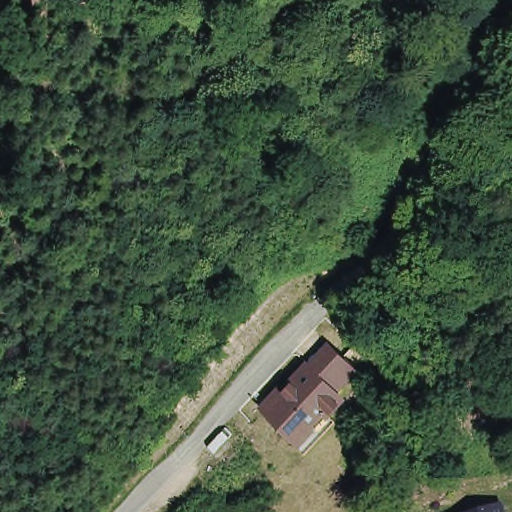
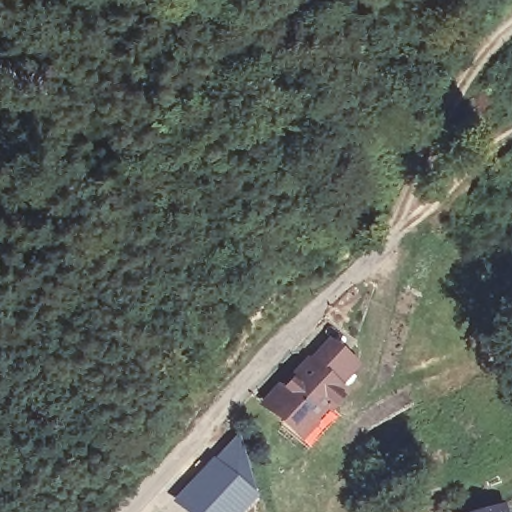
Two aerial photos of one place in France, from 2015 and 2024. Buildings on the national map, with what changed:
unchanged [(270,415),(336,340),(364,371),(302,445),(270,415)]
new [(172,502),(234,437),(254,498),(240,512),(183,512),(172,502)]

